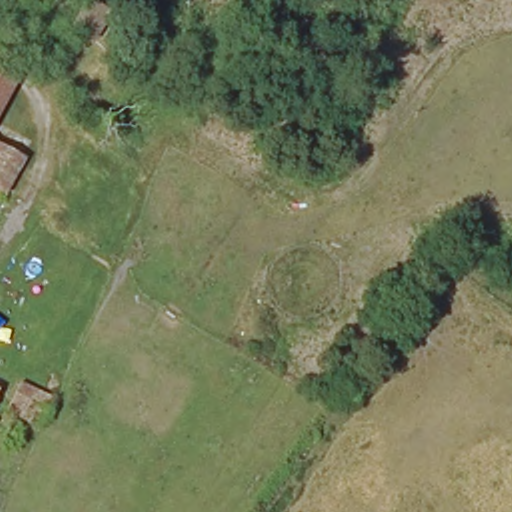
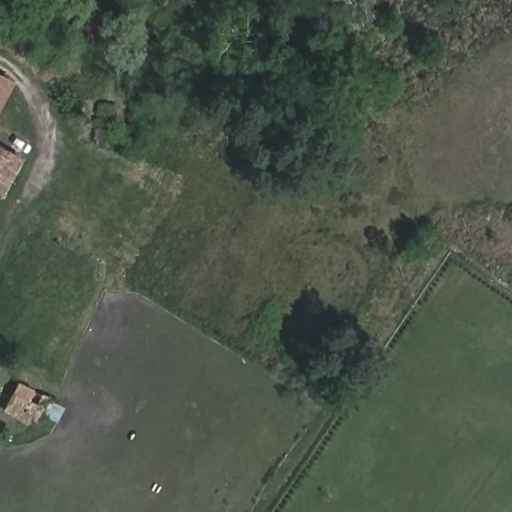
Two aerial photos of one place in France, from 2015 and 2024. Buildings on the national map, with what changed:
unchanged [(15,83),(0,110),(0,75),(15,83)]
unchanged [(0,189),(0,148),(25,161),(7,192),(0,189)]
unchanged [(49,399),(37,421),(30,416),(26,422),(5,411),(20,383),(49,399)]

